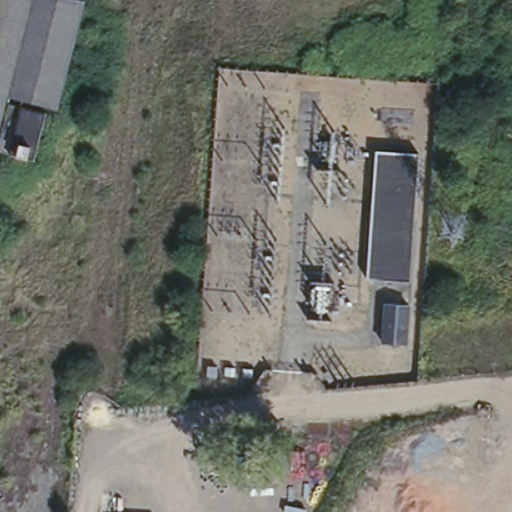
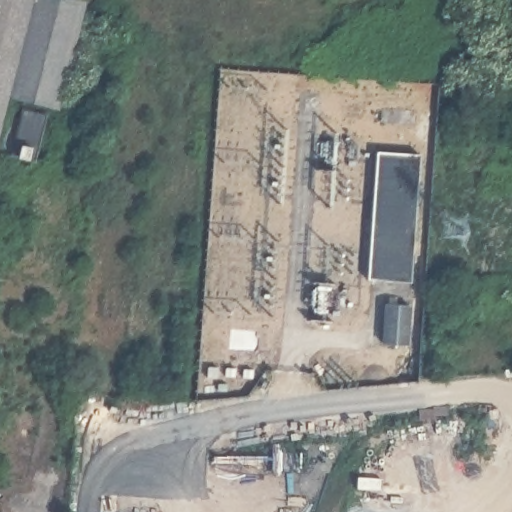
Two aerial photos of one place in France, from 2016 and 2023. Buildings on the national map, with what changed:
unchanged [(50,100),(3,89),(0,99),(0,0),(67,0),(75,2),(50,100)]
unchanged [(25,143),(0,136),(0,114),(4,100),(36,109),(25,143)]
unchanged [(419,154),(409,278),(368,277),(378,152),(419,154)]
unchanged [(387,298),(411,300),(409,338),(384,336),(387,298)]

